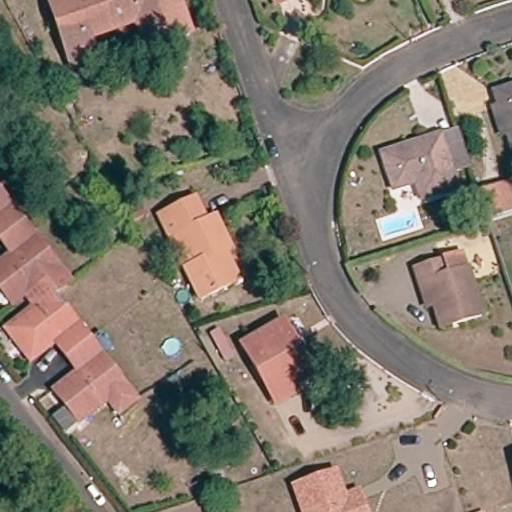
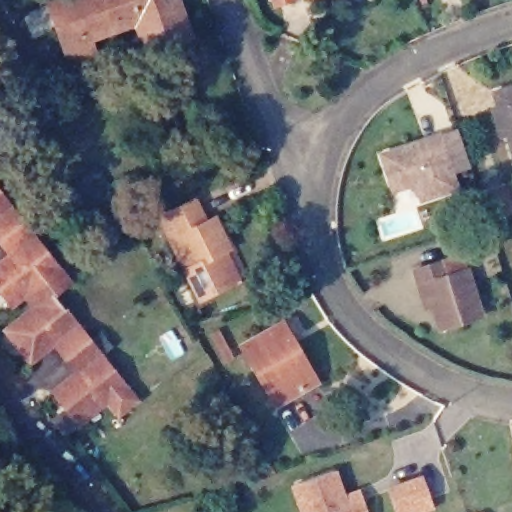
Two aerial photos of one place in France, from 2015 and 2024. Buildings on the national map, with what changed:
unchanged [(145,50),(141,40),(136,24),(90,40),(96,62),(72,70),(50,5),(63,0),(178,0),(184,16),(190,34),(145,50)]
unchanged [(503,107),(499,93),(512,89),(512,137),(507,140),(497,109),(503,107)]
unchanged [(462,125),(472,156),(474,161),(456,167),(461,183),(426,194),(421,177),(400,184),(388,152),(445,131),(462,125)]
unchanged [(477,191),(505,182),(512,204),(512,212),(487,220),(477,191)]
unchanged [(23,221),(0,239),(0,238),(0,191),(23,221)]
unchanged [(238,279),(204,294),(189,264),(186,256),(193,252),(183,233),(175,237),(164,216),(200,198),(211,219),(219,214),(236,245),(232,247),(244,275),(238,279)]
unchanged [(482,214),(470,218),(467,207),(479,203),(482,214)]
unchanged [(461,227),(448,231),(445,221),(458,218),(461,227)]
unchanged [(0,287),(0,262),(11,253),(0,239),(23,221),(70,280),(53,293),(43,279),(24,294),(17,299),(12,303),(0,287)]
unchanged [(419,285),(414,271),(462,255),(481,314),(440,328),(433,307),(427,309),(419,285)]
unchanged [(11,326),(35,308),(24,294),(43,279),(53,293),(89,338),(66,356),(55,342),(31,361),(19,345),(7,329),(11,326)]
unchanged [(242,347),(283,323),(293,338),(315,380),(311,382),(274,403),(242,347)]
unchanged [(65,404),(53,388),(77,370),(66,356),(89,338),(135,397),(118,411),(107,397),(82,416),(78,420),(65,404)]
unchanged [(367,512),(298,512),(290,487),(337,469),(346,495),(358,489),(367,512)]
new [(436,510),(429,512),(397,512),(388,488),(424,475),(436,510)]

